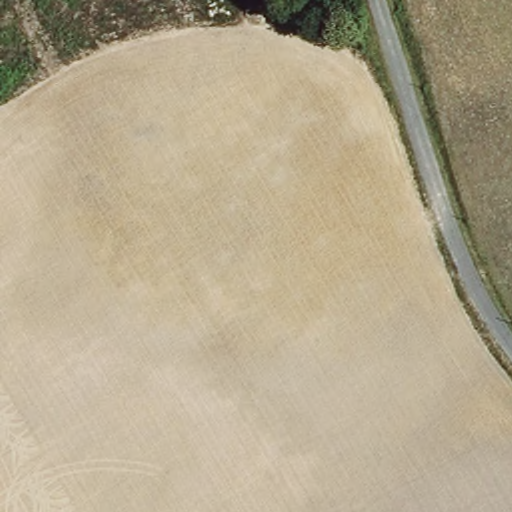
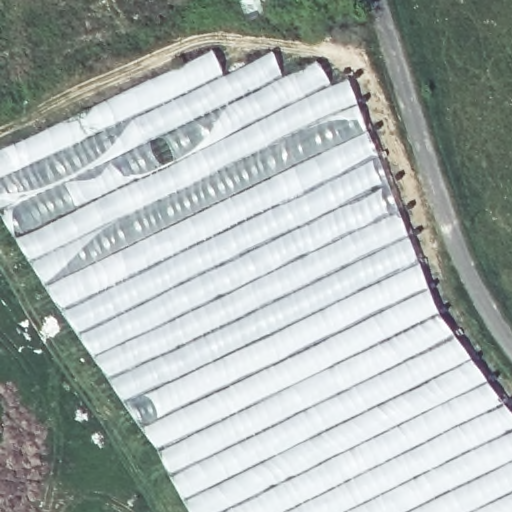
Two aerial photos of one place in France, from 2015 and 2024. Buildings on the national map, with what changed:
new [(47,236),(34,248),(32,249),(37,256),(72,237),(70,232),(60,237),(55,228),(68,220),(65,214),(100,195),(97,190),(90,192),(85,180),(92,177),(88,167),(84,169),(71,146),(87,138),(77,116),(105,100),(176,68),(212,49),(225,73),(272,50),(283,75),(317,59),(332,84),(348,77),(387,179),(432,294),(449,325),(495,389),(512,410),(512,512),(188,512),(155,452),(58,310),(17,242),(43,228),(47,236)]
demolished [(199,74),(219,107),(271,73),(292,106),(338,79),(409,265),(506,414),(512,422),(512,512),(0,512),(0,165),(151,69),(165,95),(199,74)]

